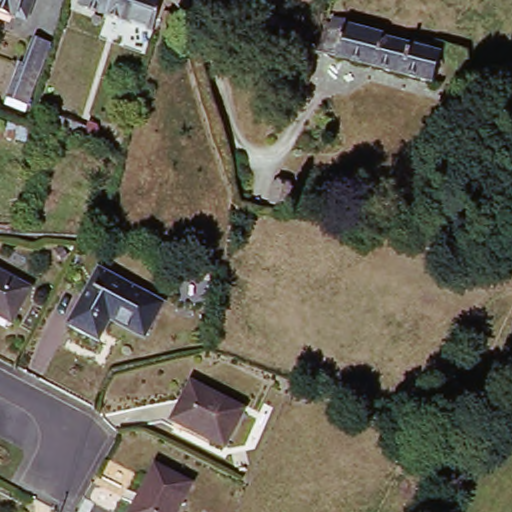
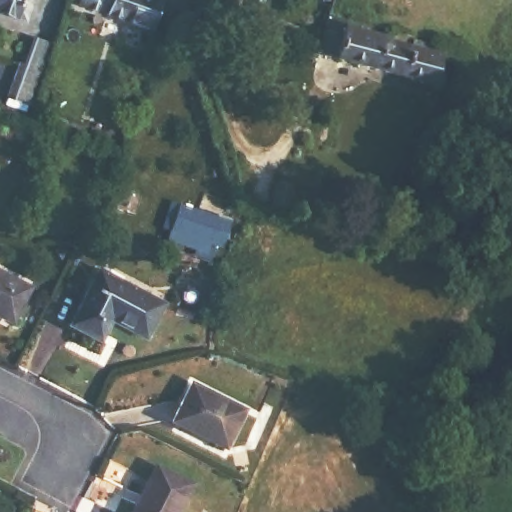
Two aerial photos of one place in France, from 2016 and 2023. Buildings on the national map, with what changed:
unchanged [(23,23),(16,19),(15,22),(0,16),(0,0),(31,0),(23,23)]
unchanged [(154,35),(109,19),(112,3),(100,0),(158,0),(164,2),(154,35)]
unchanged [(425,83),(332,60),(341,27),(393,43),(392,46),(420,55),(421,52),(452,61),(442,88),(425,83)]
unchanged [(20,60),(26,61),(34,33),(50,37),(27,106),(7,100),(20,60)]
unchanged [(0,125),(0,107),(4,107),(0,125)]
unchanged [(85,119),(81,129),(54,119),(54,116),(50,115),(52,107),(85,119)]
unchanged [(291,182),(286,200),(269,196),(273,180),(291,182)]
new [(231,221),(222,249),(212,246),(209,257),(167,243),(179,203),(231,221)]
unchanged [(101,268),(165,302),(145,338),(113,320),(102,341),(71,325),(101,268)]
unchanged [(12,322),(0,316),(0,272),(32,288),(12,322)]
unchanged [(243,411),(224,448),(177,422),(196,384),(243,411)]
unchanged [(196,484),(182,512),(136,512),(159,467),(196,484)]

